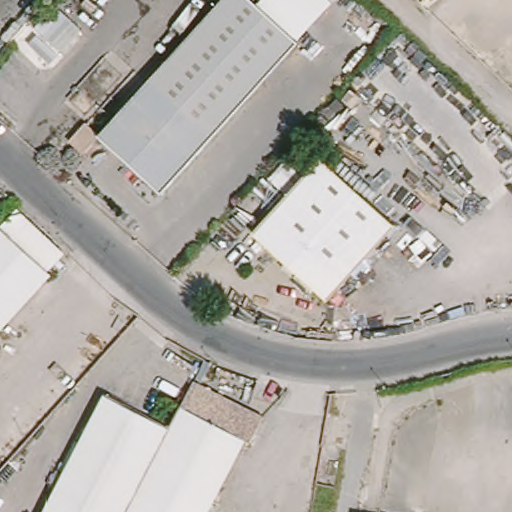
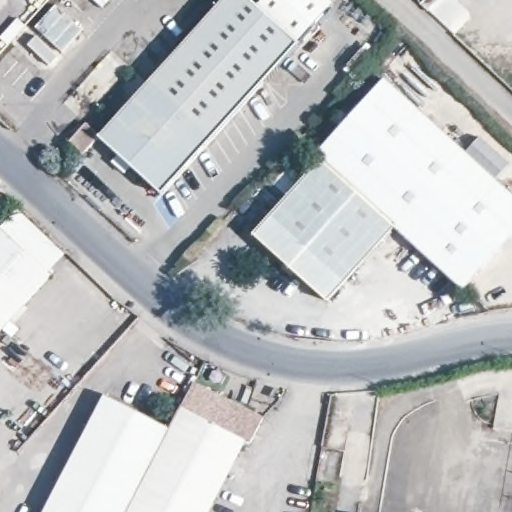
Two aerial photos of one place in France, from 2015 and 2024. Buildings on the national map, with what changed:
unchanged [(108,132),(226,0),(322,0),(329,6),(305,39),(170,191),(106,135),(108,132)]
unchanged [(52,77),(15,45),(32,26),(70,59),(52,77)]
new [(512,195),(512,234),(463,289),(395,225),(391,227),(321,164),(314,155),(384,78),(512,195)]
demolished [(127,158),(83,200),(60,180),(78,156),(66,145),(85,122),(101,135),(127,158)]
unchanged [(321,164),(397,234),(329,308),(254,240),(321,164)]
unchanged [(61,257),(49,276),(0,232),(0,222),(12,211),(61,257)]
unchanged [(0,232),(49,276),(0,330),(0,232)]
unchanged [(198,381),(268,420),(255,444),(250,442),(215,512),(130,512),(173,428),(198,381)]
unchanged [(44,512),(105,394),(173,428),(130,512),(44,512)]

